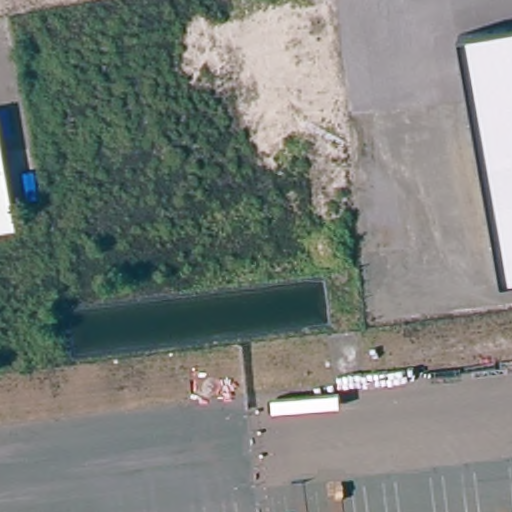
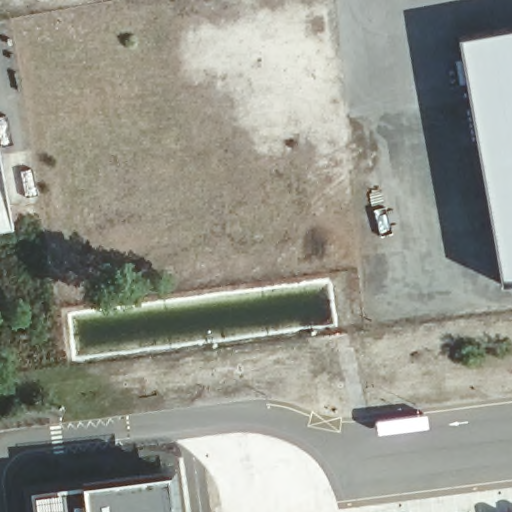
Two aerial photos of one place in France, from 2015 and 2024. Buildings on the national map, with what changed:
unchanged [(460,42),(512,33),(512,288),(503,289),(460,42)]
unchanged [(0,234),(0,161),(12,232),(0,234)]
new [(30,488),(85,481),(169,470),(174,512),(33,512),(30,488)]

